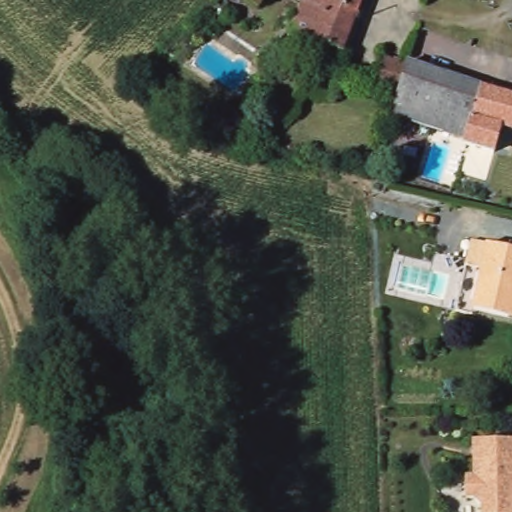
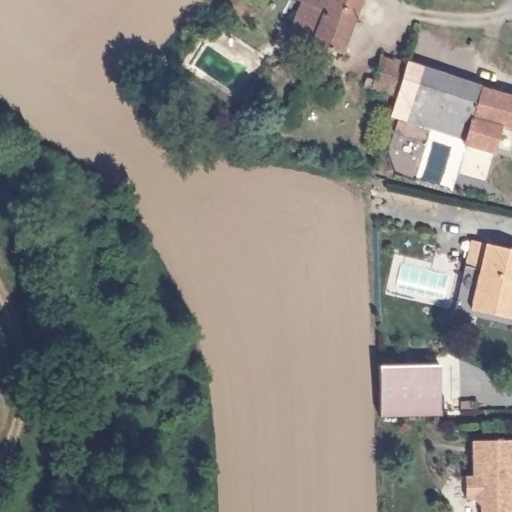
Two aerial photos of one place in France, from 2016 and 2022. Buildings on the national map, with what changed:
unchanged [(258,7),(248,0),(263,0),(258,7)]
unchanged [(347,52),(291,32),(299,14),(287,9),(291,0),(365,0),(347,52)]
unchanged [(478,86),(478,88),(477,92),(476,94),(474,105),(472,114),(471,118),(470,123),(468,128),(466,137),(466,139),(461,137),(455,135),(451,134),(435,130),(420,125),(405,121),(404,120),(400,119),(392,117),(393,113),(393,112),(396,104),(397,99),(398,97),(372,89),(383,53),(408,62),(479,86),(478,86)]
unchanged [(495,153),(485,151),(478,149),(470,146),(465,145),(465,140),(466,139),(466,137),(468,128),(470,123),(471,118),(472,114),(474,105),(476,94),(477,92),(478,88),(478,86),(479,86),(485,87),(503,92),(510,94),(512,95),(512,130),(501,127),(499,136),(496,146),(495,153)]
unchanged [(476,322),(460,318),(472,269),(478,239),(495,243),(512,248),(512,321),(478,313),(476,322)]
new [(439,363),(440,413),(380,416),(379,363),(439,363)]
unchanged [(458,482),(466,482),(465,446),(512,446),(512,512),(473,512),(466,504),(459,504),(458,482)]

